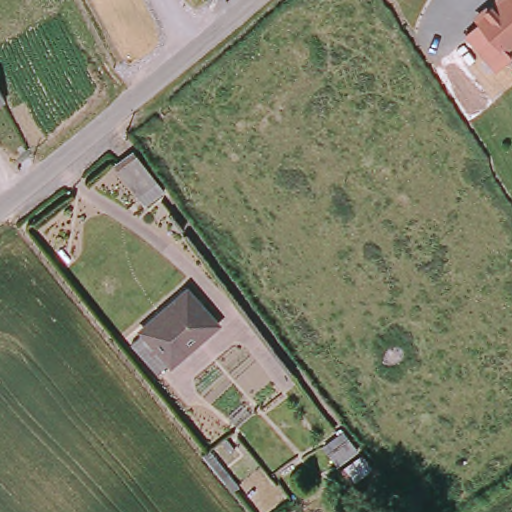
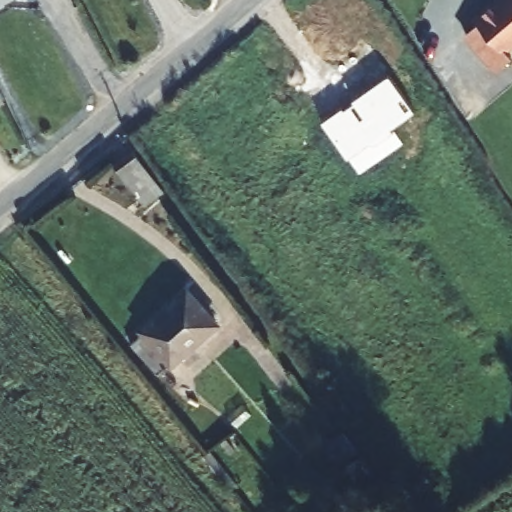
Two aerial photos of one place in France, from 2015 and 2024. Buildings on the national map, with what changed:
new [(5,4),(0,7),(0,0),(8,0),(5,2),(5,4)]
unchanged [(507,47),(512,53),(512,58),(498,69),(466,32),(482,19),(478,15),(495,0),(512,0),(512,43),(507,47)]
new [(417,109),(347,157),(321,120),(390,72),(417,109)]
unchanged [(0,98),(0,74),(9,92),(0,98)]
unchanged [(154,182),(135,196),(114,167),(132,154),(154,182)]
unchanged [(167,368),(138,333),(198,285),(227,319),(167,368)]
unchanged [(359,455),(337,470),(323,452),(345,435),(359,455)]

